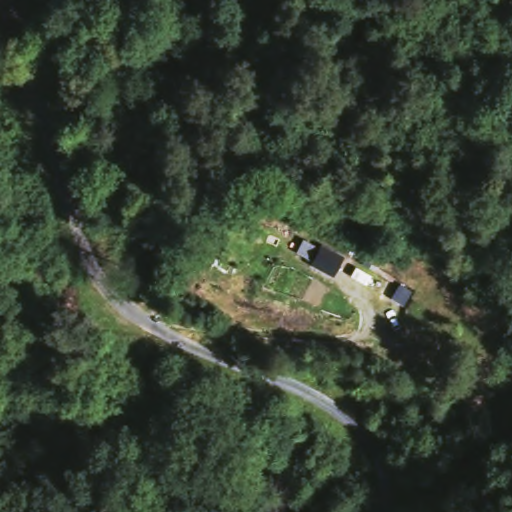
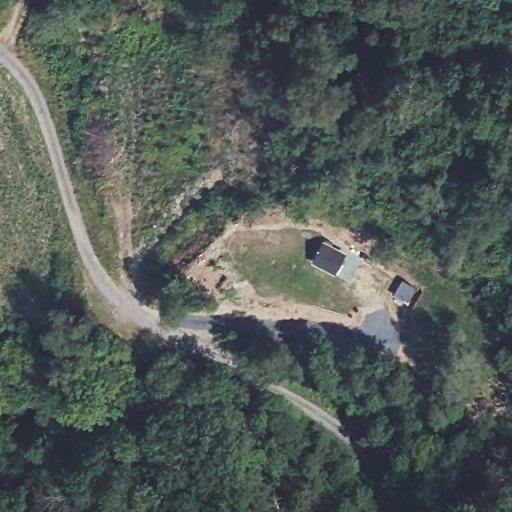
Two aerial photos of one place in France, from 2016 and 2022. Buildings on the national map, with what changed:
unchanged [(311,262),(318,248),(338,258),(330,272),(311,262)]

